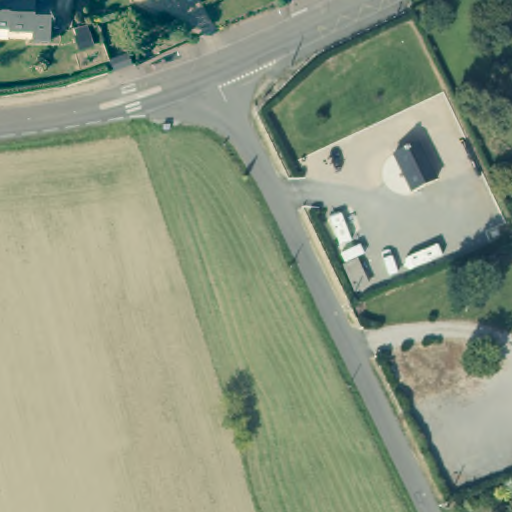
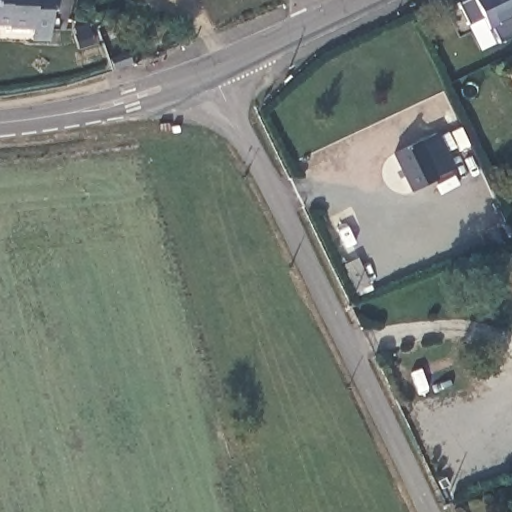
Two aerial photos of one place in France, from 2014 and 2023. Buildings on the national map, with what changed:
unchanged [(37,41),(38,32),(0,29),(0,0),(55,0),(53,21),(51,42),(37,41)]
new [(483,20),(468,25),(458,5),(469,0),(512,0),(512,36),(495,44),(483,20)]
unchanged [(421,143),(438,180),(413,192),(396,155),(421,143)]

